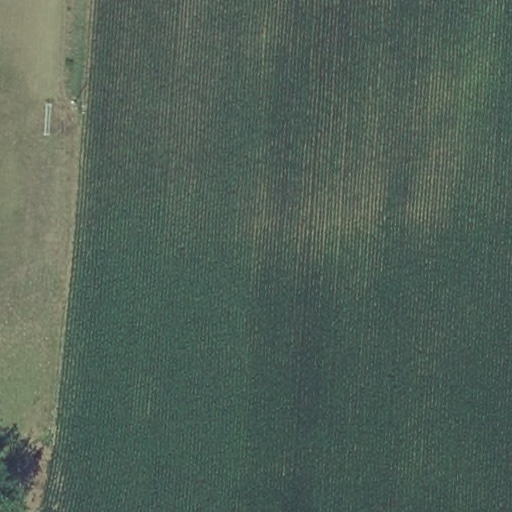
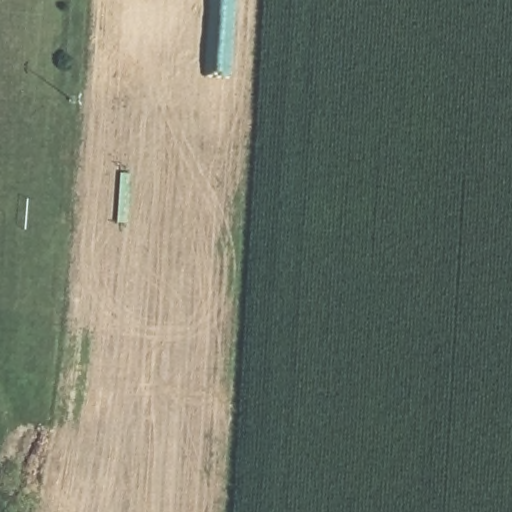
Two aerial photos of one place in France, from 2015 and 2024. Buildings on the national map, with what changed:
[]

